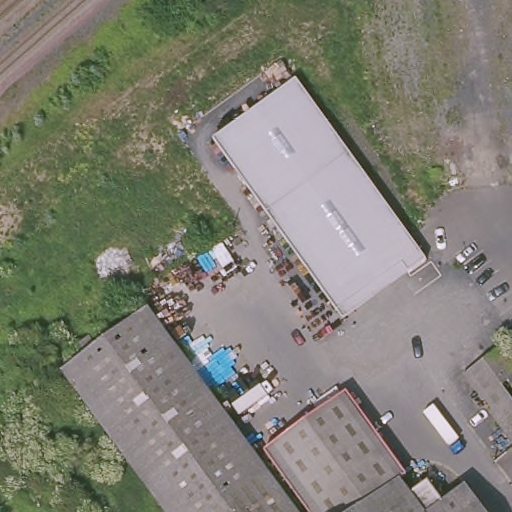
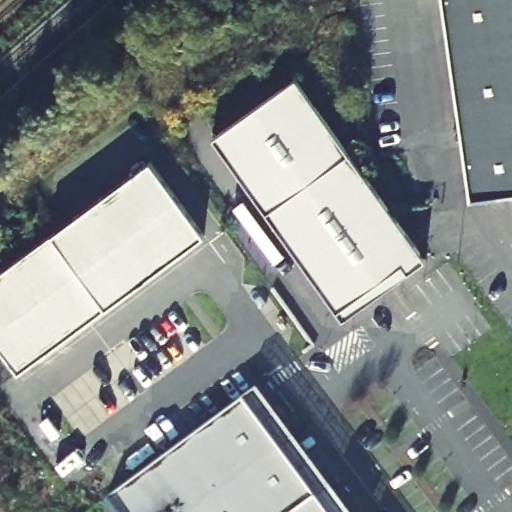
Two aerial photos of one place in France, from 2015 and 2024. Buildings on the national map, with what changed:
unchanged [(434,0),(512,0),(512,186),(458,192),(434,0)]
unchanged [(337,313),(209,137),(293,76),(422,254),(337,313)]
new [(206,233),(19,374),(0,349),(0,272),(151,161),(206,233)]
demolished [(341,387),(397,464),(391,470),(401,483),(417,471),(433,492),(458,475),(485,512),(166,512),(61,370),(83,356),(75,345),(86,337),(93,347),(149,306),(254,452),(341,387)]
demolished [(500,347),(512,364),(512,384),(491,354),(500,347)]
demolished [(512,384),(512,445),(461,376),(491,354),(512,384)]
new [(106,512),(100,504),(236,411),(314,512),(106,512)]

